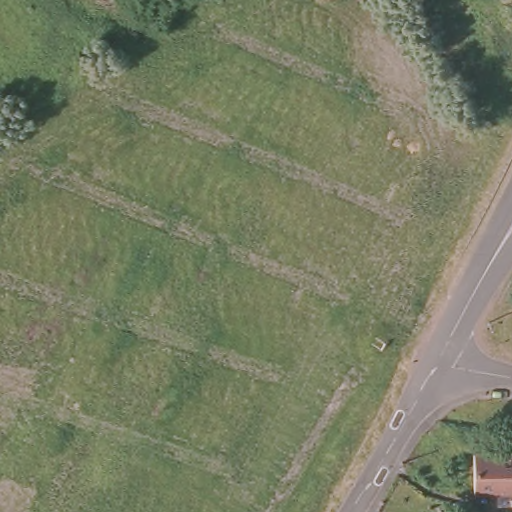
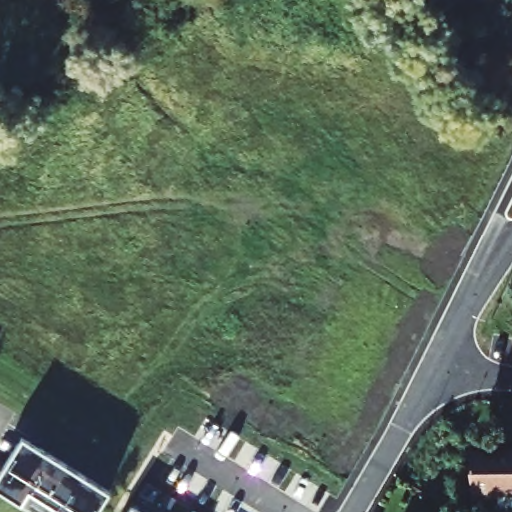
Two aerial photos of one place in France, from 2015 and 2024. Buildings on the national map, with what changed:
new [(0,490),(0,471),(22,436),(40,448),(19,482),(30,489),(29,491),(57,509),(55,512),(34,512),(20,504),(1,491),(0,490)]
new [(40,448),(110,491),(96,512),(55,512),(57,509),(29,491),(30,489),(19,482),(40,448)]
unchanged [(512,490),(471,491),(472,453),(472,450),(512,450),(512,490)]
new [(131,506),(141,512),(127,512),(131,506)]

